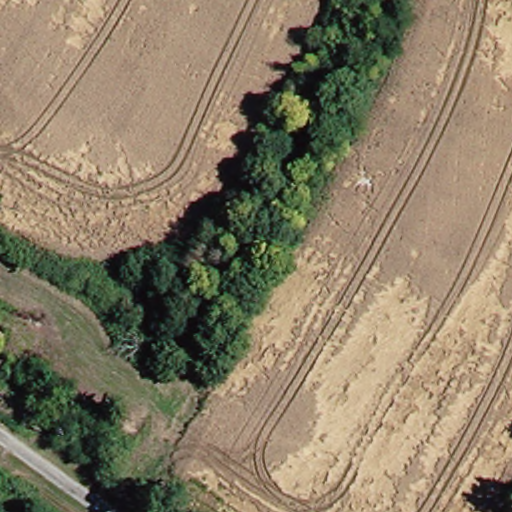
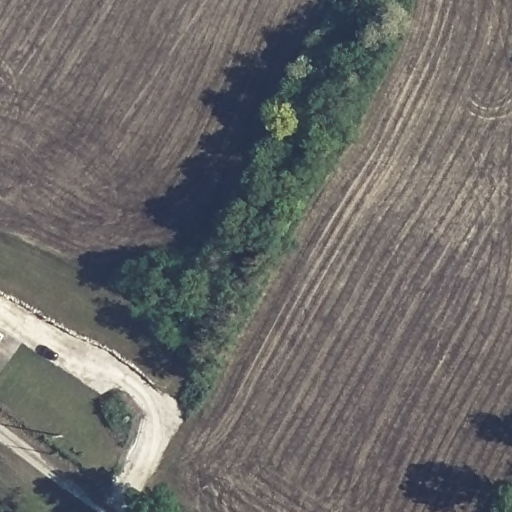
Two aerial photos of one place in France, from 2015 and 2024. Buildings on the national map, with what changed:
unchanged [(0,346),(0,339),(3,341),(0,346)]

